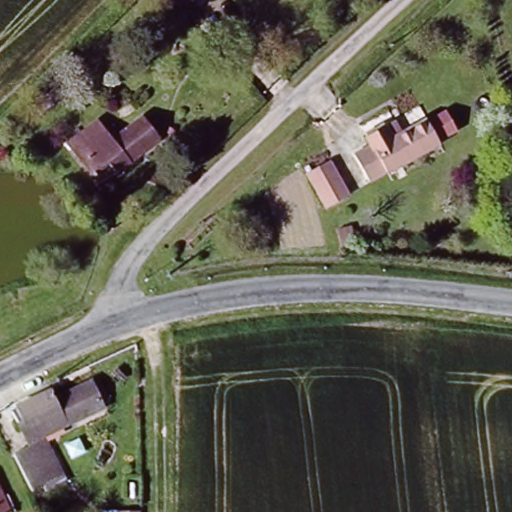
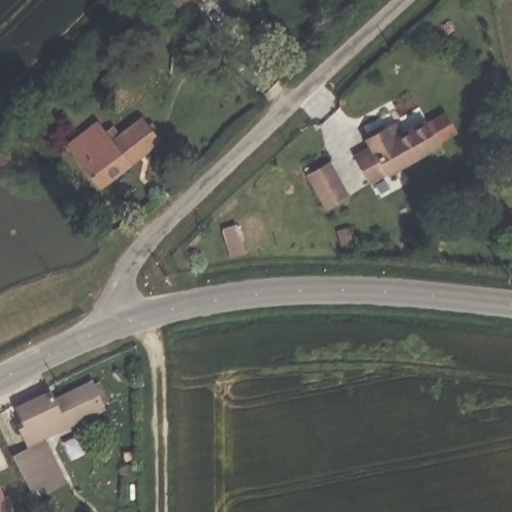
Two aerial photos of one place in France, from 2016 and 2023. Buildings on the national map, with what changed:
unchanged [(149,114),(168,136),(107,187),(82,159),(66,141),(84,127),(88,132),(101,121),(112,134),(118,140),(149,114)]
unchanged [(356,153),(371,146),(366,134),(388,124),(394,140),(427,124),(447,115),(458,139),(438,148),(369,181),(356,153)]
unchanged [(350,200),(327,209),(311,172),(335,162),(350,200)]
unchanged [(109,194),(119,203),(114,210),(103,201),(109,194)]
unchanged [(47,438),(31,407),(58,394),(63,404),(98,386),(109,409),(74,426),(56,434),(47,438)]
unchanged [(49,443),(68,480),(47,492),(28,455),(49,443)]
unchanged [(13,492),(20,507),(14,510),(15,512),(0,512),(0,484),(6,496),(13,492)]

